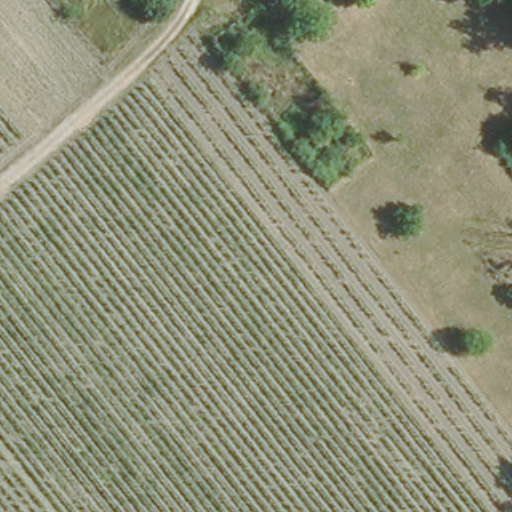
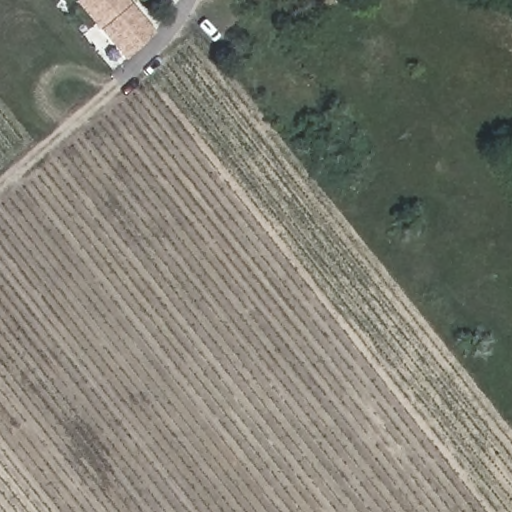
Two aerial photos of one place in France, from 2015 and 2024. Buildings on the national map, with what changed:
new [(74,2),(76,0),(126,0),(130,5),(155,34),(126,60),(99,30),(74,2)]

